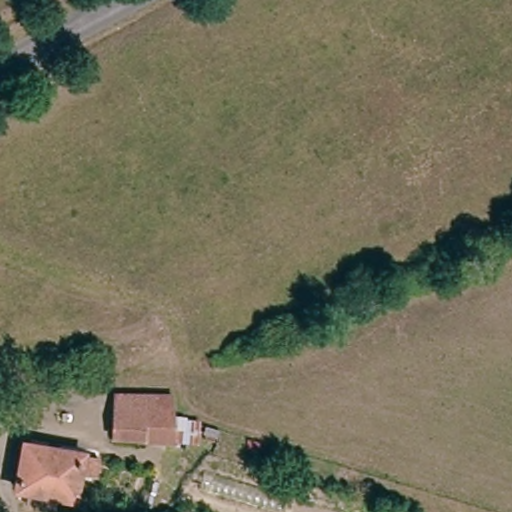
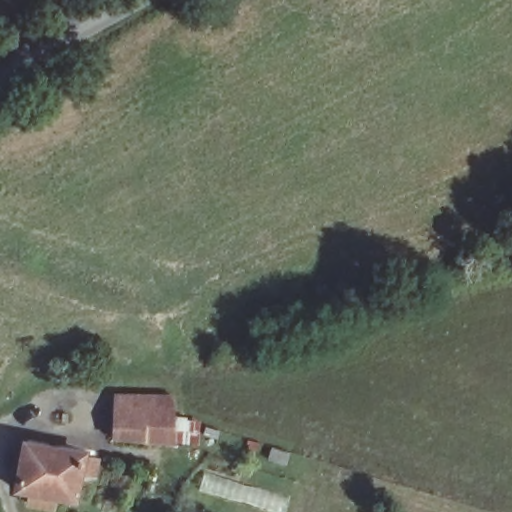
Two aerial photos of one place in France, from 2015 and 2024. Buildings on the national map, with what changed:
unchanged [(149,440),(149,445),(119,445),(120,401),(176,401),(176,420),(168,420),(168,440),(149,440)]
unchanged [(22,445),(79,455),(79,459),(94,461),(91,477),(75,475),(71,504),(51,500),(49,511),(24,506),(25,495),(13,493),(18,465),(22,445)]

